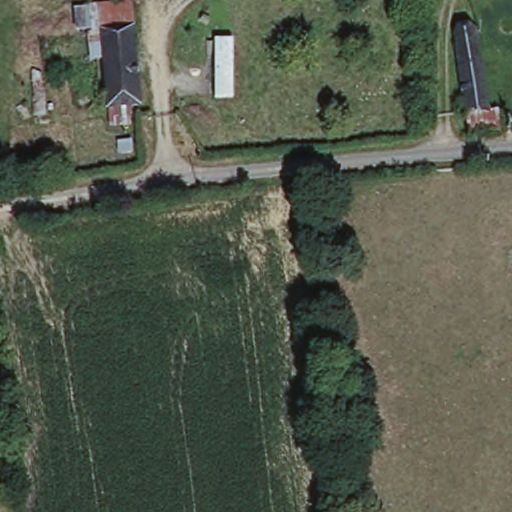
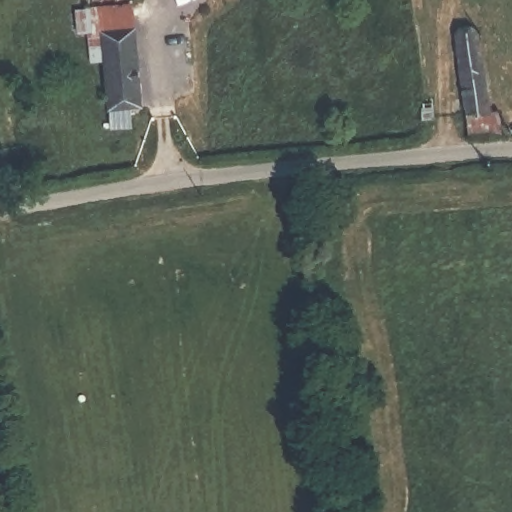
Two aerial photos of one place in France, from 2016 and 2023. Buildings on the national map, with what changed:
unchanged [(108,30),(110,55),(97,55),(95,29),(101,27),(97,5),(136,2),(138,26),(108,30)]
unchanged [(144,100),(134,102),(135,121),(117,121),(110,55),(108,30),(138,26),(144,100)]
unchanged [(502,132),(471,134),(455,29),(475,27),(483,70),(488,106),(497,106),(501,125),(502,132)]
unchanged [(215,41),(234,42),(234,100),(215,100),(215,41)]
unchanged [(432,104),(433,119),(425,120),(422,104),(432,104)]

